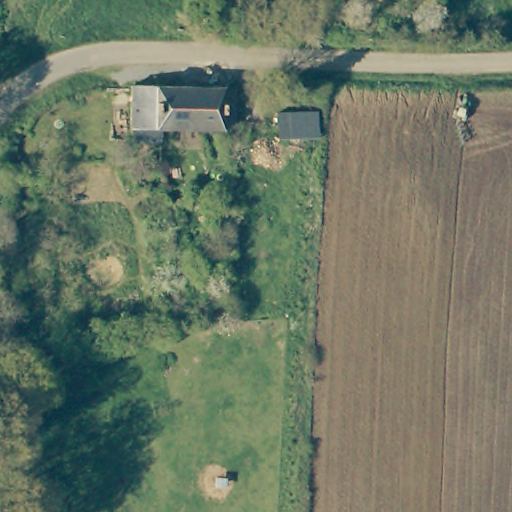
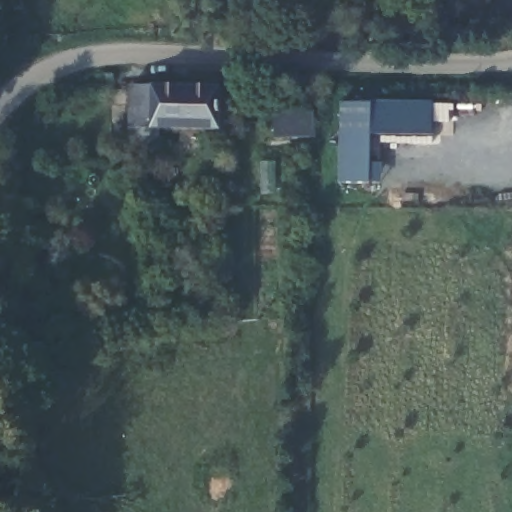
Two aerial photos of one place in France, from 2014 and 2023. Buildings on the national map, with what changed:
unchanged [(215,90),(225,91),(223,132),(223,134),(214,133),(177,132),(154,131),(154,145),(128,144),(126,144),(123,131),(123,130),(124,87),(178,89),(215,90)]
new [(341,106),(433,103),(434,137),(374,136),(373,165),(383,165),(383,186),(340,185),(341,106)]
new [(275,113),(315,112),(316,140),(277,140),(275,113)]

